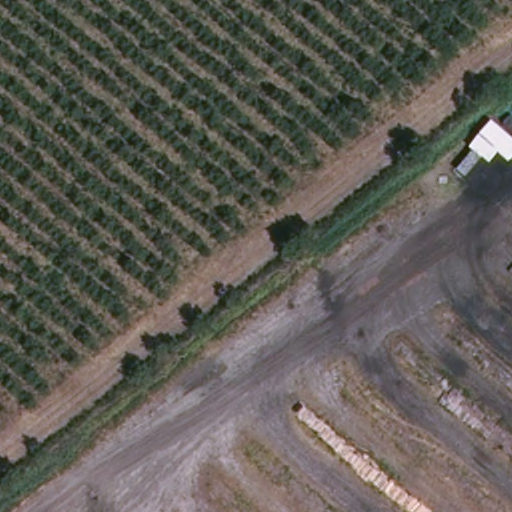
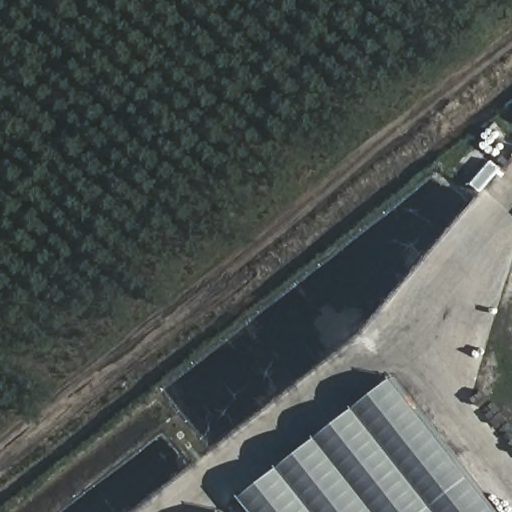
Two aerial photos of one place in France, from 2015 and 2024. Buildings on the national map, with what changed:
unchanged [(500,150),(491,164),(472,148),(495,121),(512,136),(512,159),(500,150)]
new [(229,512),(394,380),(500,512),(229,512)]

